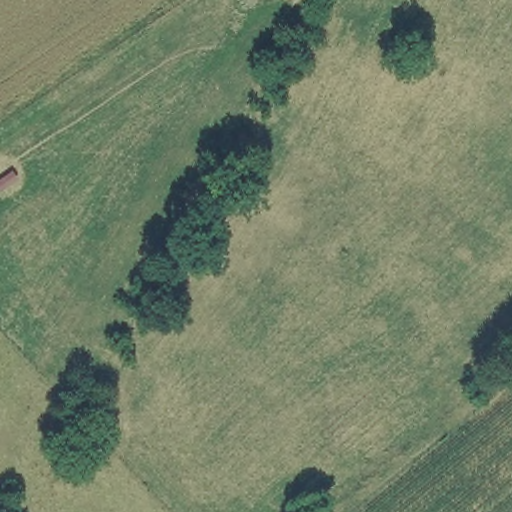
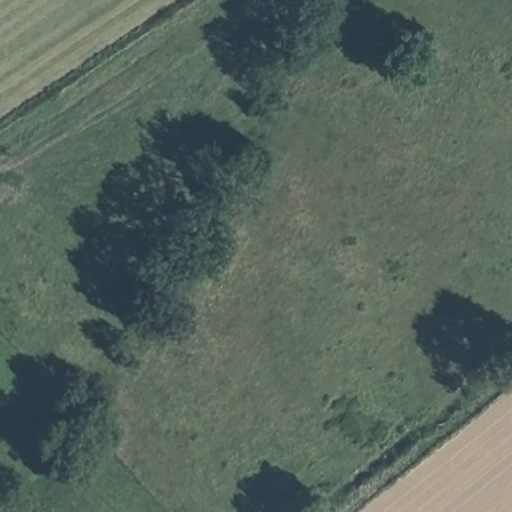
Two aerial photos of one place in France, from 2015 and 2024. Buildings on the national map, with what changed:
[]

